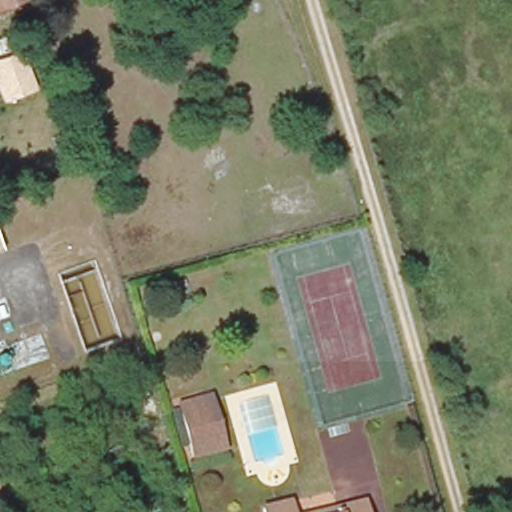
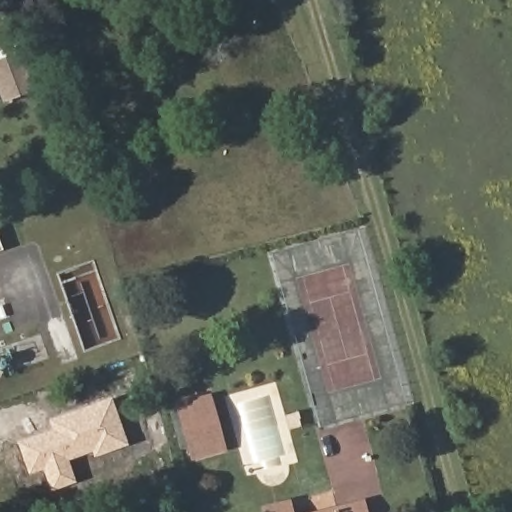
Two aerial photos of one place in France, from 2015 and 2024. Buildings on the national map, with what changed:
unchanged [(0,8),(0,0),(20,0),(0,8)]
unchanged [(3,102),(0,95),(0,57),(23,49),(38,90),(3,102)]
unchanged [(1,247),(0,247),(0,246),(1,247)]
unchanged [(187,455),(172,404),(203,395),(208,414),(211,425),(217,447),(187,455)]
new [(51,429),(48,419),(112,396),(128,444),(92,457),(91,452),(68,459),(76,482),(50,491),(44,468),(28,473),(17,441),(51,429)]
unchanged [(286,501),(288,512),(261,512),(260,507),(286,501)]
unchanged [(360,501),(362,512),(316,512),(335,507),(360,501)]

